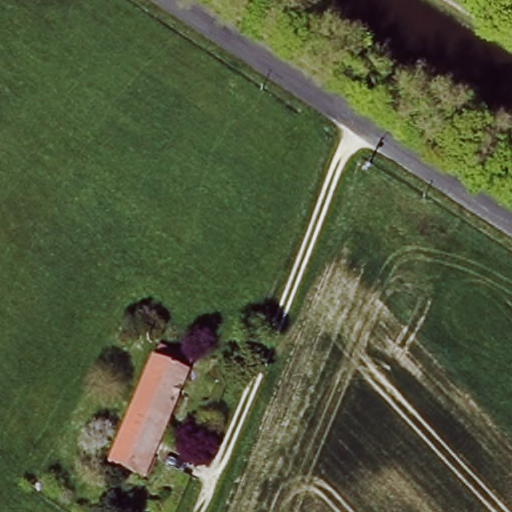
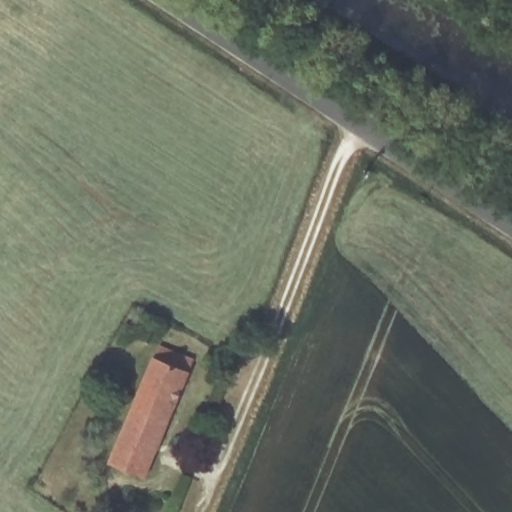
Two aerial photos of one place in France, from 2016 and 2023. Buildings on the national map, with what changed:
unchanged [(150,354),(188,374),(143,480),(106,465),(150,354)]

